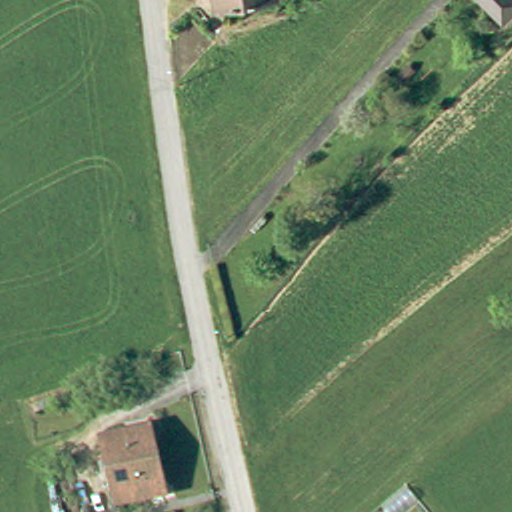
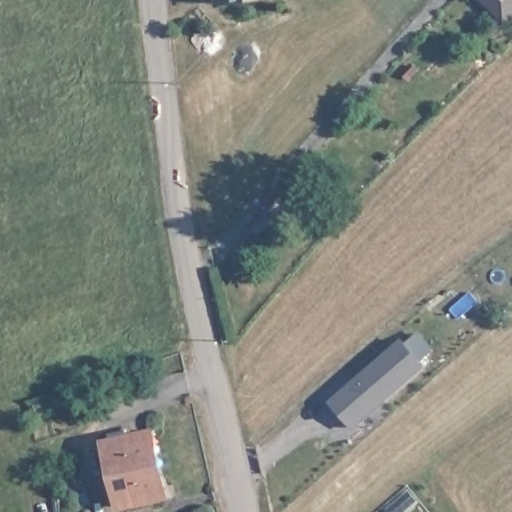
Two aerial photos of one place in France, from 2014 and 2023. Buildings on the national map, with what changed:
unchanged [(216,4),(215,0),(241,0),(216,4)]
unchanged [(512,8),(512,14),(498,26),(472,2),(474,0),(504,0),(512,8)]
new [(425,366),(352,428),(328,401),(400,337),(425,366)]
unchanged [(155,442),(164,503),(120,511),(110,450),(155,442)]

